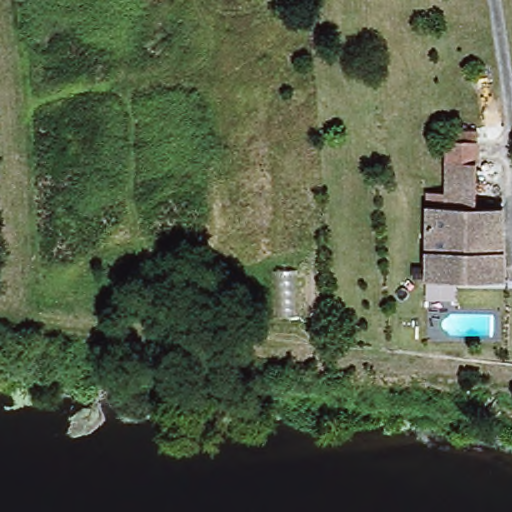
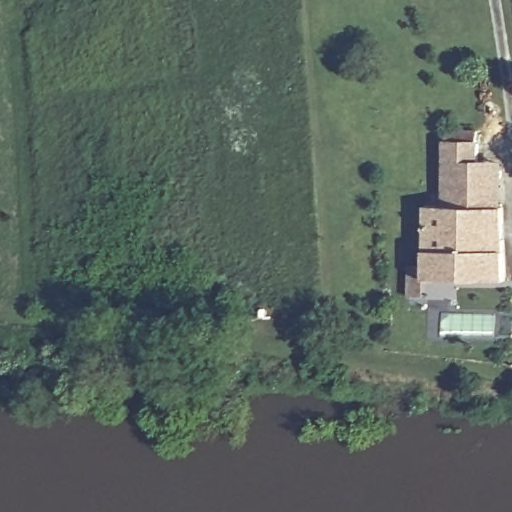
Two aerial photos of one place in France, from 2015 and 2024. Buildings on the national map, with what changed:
unchanged [(447,142),(482,144),(478,199),(507,200),(503,277),(423,273),(428,196),(443,197),(447,142)]

